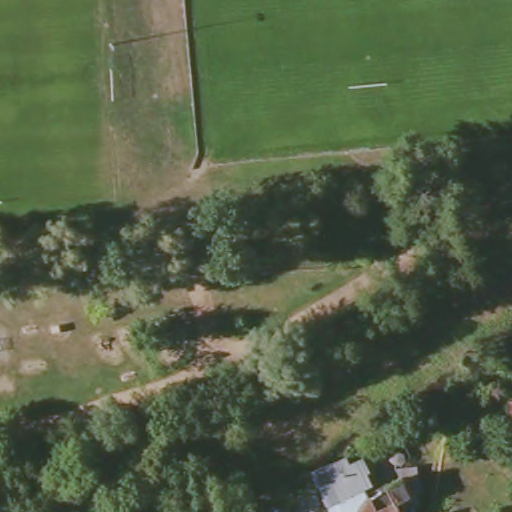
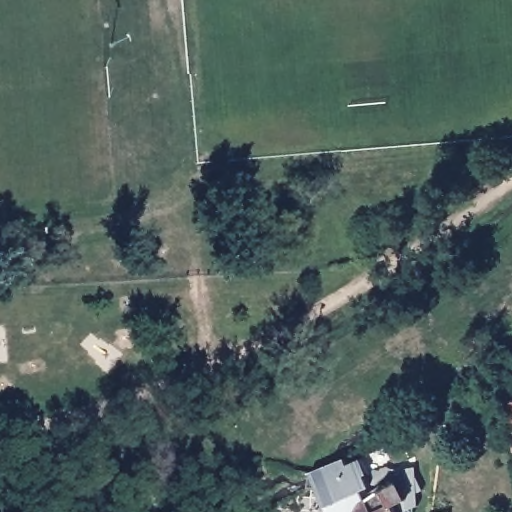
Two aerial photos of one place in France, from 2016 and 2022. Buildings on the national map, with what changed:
unchanged [(510,402),(507,402),(504,382),(512,381),(512,421),(510,402)]
unchanged [(316,469),(336,461),(350,454),(352,459),(360,456),(367,453),(373,468),(370,469),(375,481),(367,484),(372,495),(407,478),(415,497),(402,504),(405,512),(335,512),(322,483),(316,469)]

